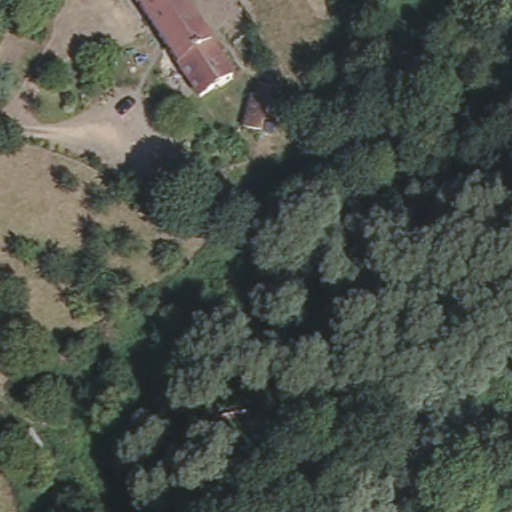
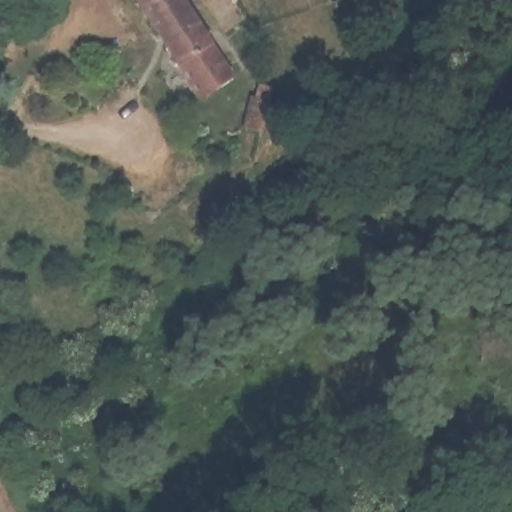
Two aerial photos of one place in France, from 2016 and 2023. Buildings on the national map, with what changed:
unchanged [(234,69),(189,97),(128,0),(189,0),(234,69)]
unchanged [(238,136),(221,129),(232,99),(250,106),(238,136)]

